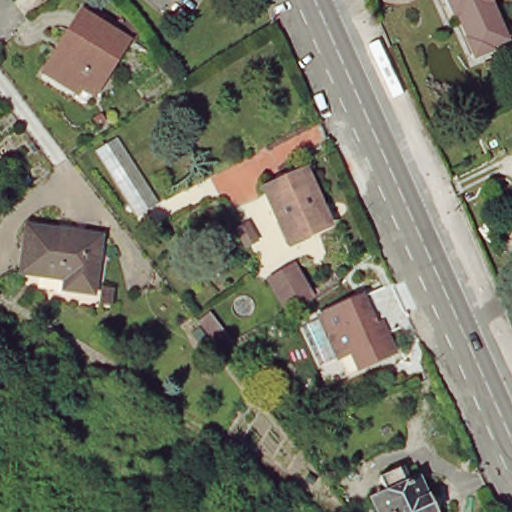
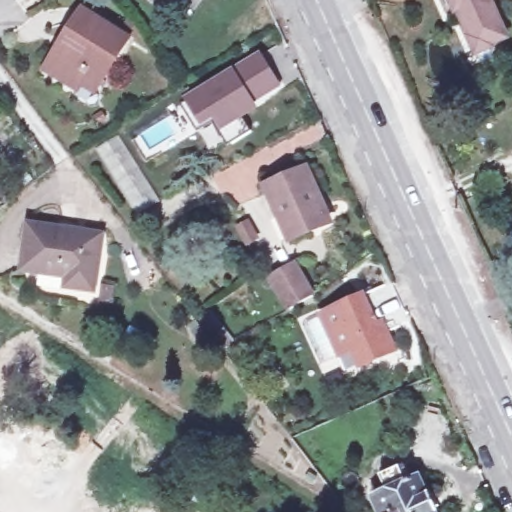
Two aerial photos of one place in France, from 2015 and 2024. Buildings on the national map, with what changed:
unchanged [(492,3),(509,42),(482,55),(464,15),(457,18),(449,0),(499,0),(492,3)]
unchanged [(132,43),(100,87),(90,81),(83,90),(54,69),(90,15),(132,43)]
new [(261,50),(284,90),(221,130),(217,124),(203,131),(184,98),(261,50)]
unchanged [(135,211),(95,145),(122,127),(160,194),(135,211)]
unchanged [(293,238),(270,185),(306,169),(330,221),(293,238)]
unchanged [(247,241),(240,222),(252,216),(260,235),(247,241)]
unchanged [(104,232),(95,283),(67,279),(69,269),(23,261),(32,219),(104,232)]
unchanged [(286,311),(267,278),(293,263),(313,292),(286,311)]
unchanged [(102,285),(116,287),(114,303),(101,300),(101,297),(102,285)]
unchanged [(359,370),(352,353),(339,359),(320,318),(362,299),(377,292),(391,323),(382,327),(395,354),(359,370)]
unchanged [(224,345),(200,317),(209,312),(233,340),(224,345)]
unchanged [(381,476),(404,465),(411,480),(423,474),(439,508),(436,512),(383,512),(376,498),(387,492),(381,476)]

